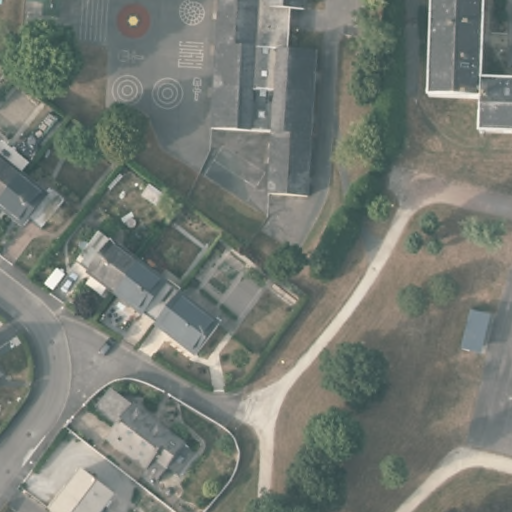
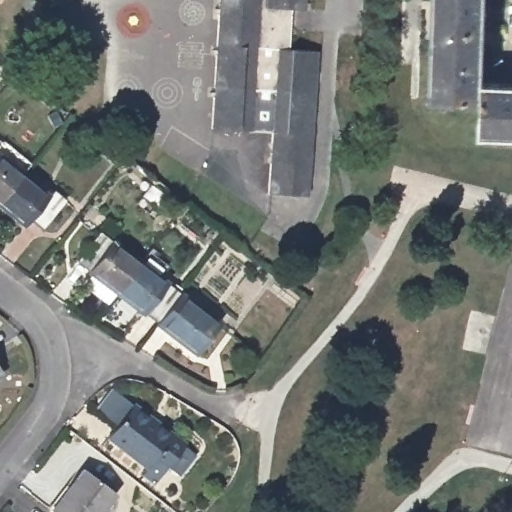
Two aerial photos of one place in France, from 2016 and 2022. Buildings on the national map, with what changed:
unchanged [(291,6),(289,46),(316,47),(310,194),(272,192),(275,130),(214,127),(220,0),(307,0),(307,7),(291,6)]
unchanged [(432,0),(484,0),(480,76),(480,93),(428,92),(432,0)]
unchanged [(512,77),(512,130),(478,129),(480,93),(480,76),(512,77)]
unchanged [(67,195),(79,205),(53,235),(41,225),(37,231),(8,207),(0,199),(0,140),(11,150),(16,144),(43,165),(34,176),(62,199),(67,195)]
unchanged [(127,297),(89,266),(115,235),(151,266),(127,297)]
unchanged [(165,328),(127,297),(151,266),(189,297),(165,328)]
unchanged [(227,328),(202,359),(165,328),(189,297),(227,328)]
unchanged [(492,317),(483,355),(462,349),(472,312),(492,317)]
unchanged [(1,375),(0,376),(0,373),(1,375)]
unchanged [(186,445),(164,471),(154,462),(148,469),(109,437),(136,404),(186,445)]
unchanged [(83,467),(114,490),(97,512),(59,512),(52,507),(83,467)]

